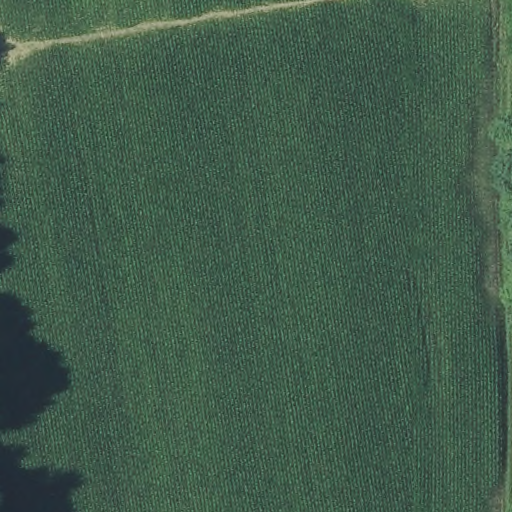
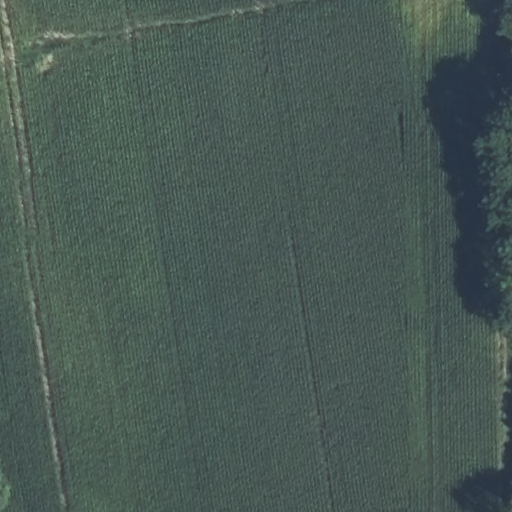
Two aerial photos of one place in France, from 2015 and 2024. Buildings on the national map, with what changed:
[]

